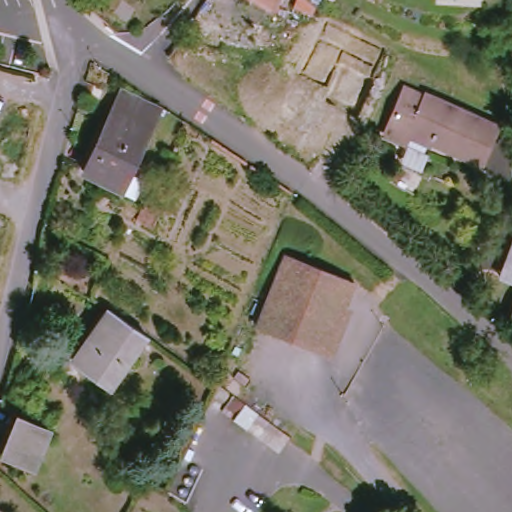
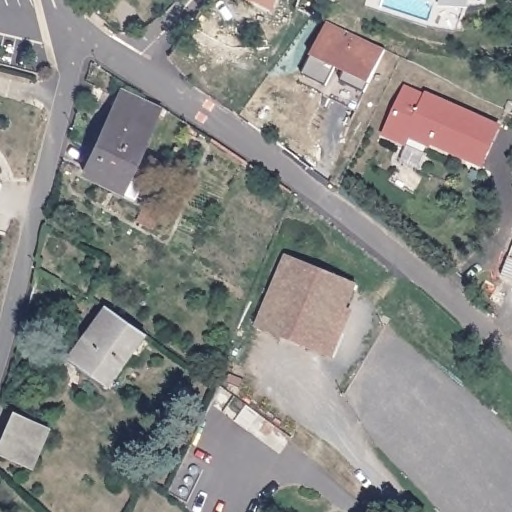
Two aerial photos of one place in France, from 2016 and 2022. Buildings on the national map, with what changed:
unchanged [(270,3),(263,0),(271,0),(270,3)]
new [(304,73),(312,55),(328,21),(384,48),(369,83),(365,91),(342,79),(345,71),(333,65),(325,84),(304,73)]
unchanged [(394,164),(399,145),(399,144),(376,135),(395,85),(493,127),(477,166),(410,140),(406,145),(426,152),(417,170),(394,164)]
unchanged [(156,106),(118,190),(79,174),(100,128),(105,115),(118,88),(156,106)]
unchanged [(512,243),(512,283),(497,277),(512,243)]
unchanged [(350,286),(322,358),(253,330),(282,259),(350,286)]
demolished [(507,305),(512,291),(512,314),(505,311),(507,305)]
unchanged [(105,385),(67,357),(101,311),(139,338),(105,385)]
unchanged [(512,312),(512,319),(510,318),(512,312)]
unchanged [(45,429),(29,469),(0,457),(0,452),(15,416),(45,429)]

